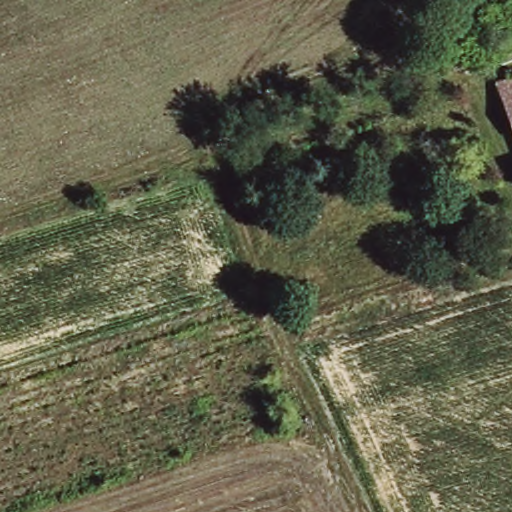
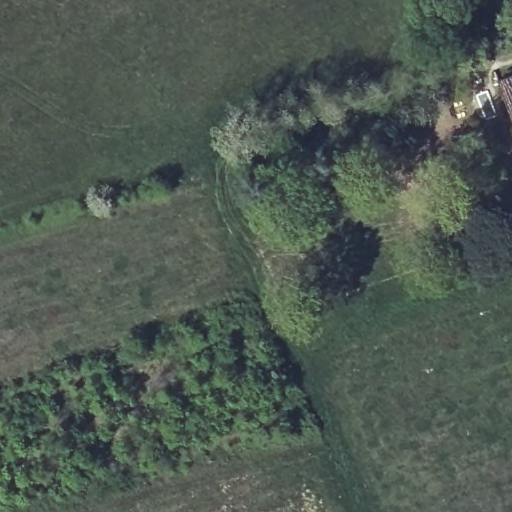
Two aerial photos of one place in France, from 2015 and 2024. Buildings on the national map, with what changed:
unchanged [(512,84),(512,127),(498,89),(512,84)]

